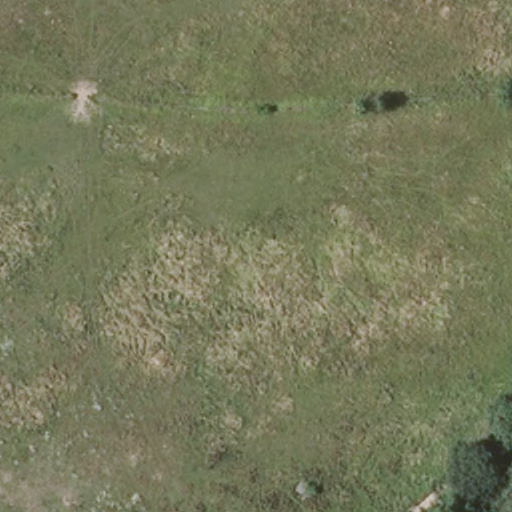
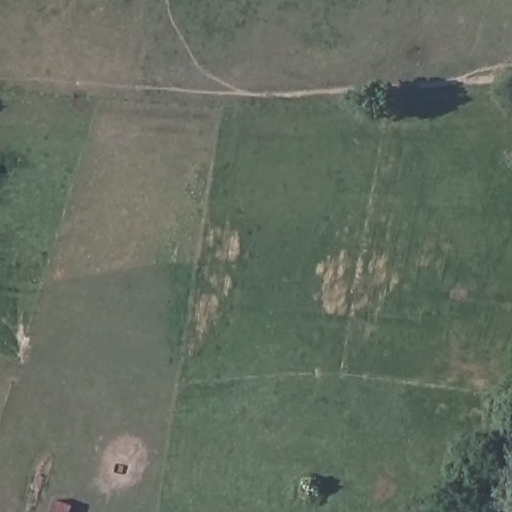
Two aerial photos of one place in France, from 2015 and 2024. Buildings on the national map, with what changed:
[]

